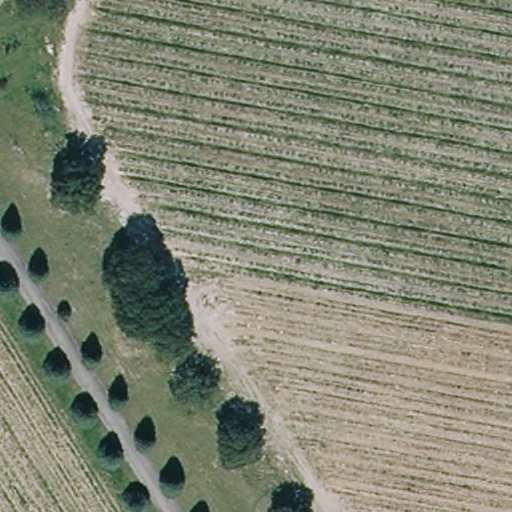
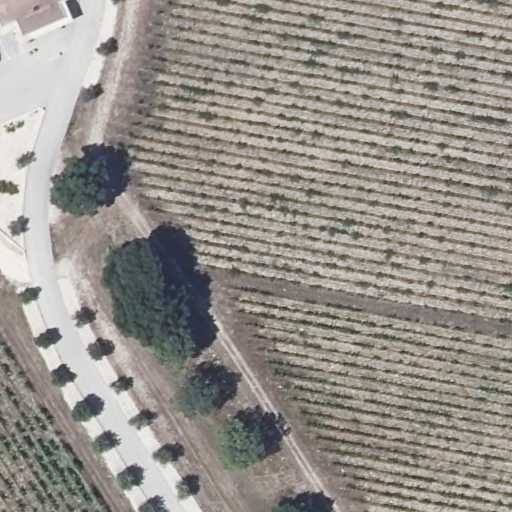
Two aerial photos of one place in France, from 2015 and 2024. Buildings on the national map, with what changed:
new [(60,1),(65,17),(22,33),(16,20),(1,26),(0,23),(0,0),(63,0),(60,1)]

